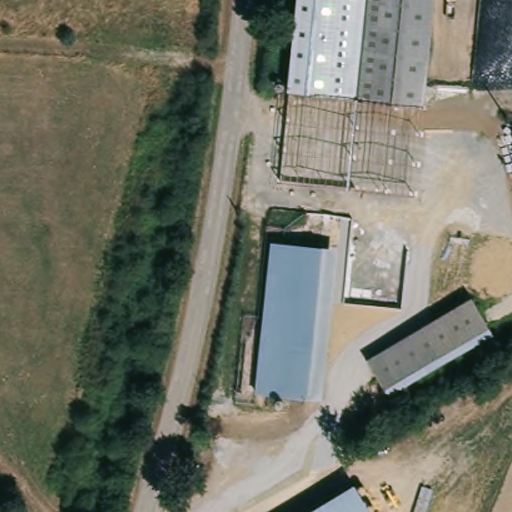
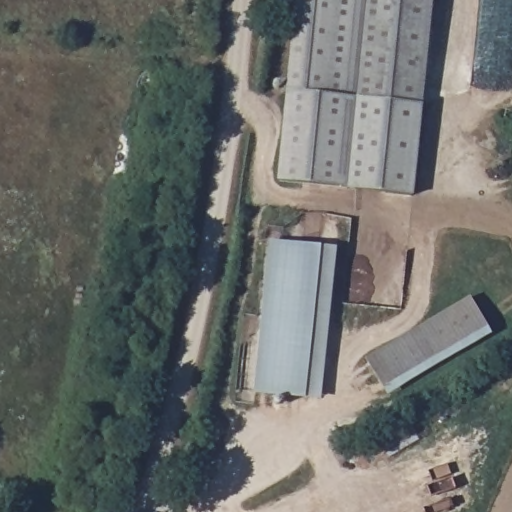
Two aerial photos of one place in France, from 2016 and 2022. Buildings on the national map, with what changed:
unchanged [(290,95),(299,0),(370,0),(360,102),(290,95)]
unchanged [(360,102),(370,0),(435,0),(425,108),(360,102)]
new [(416,195),(281,180),(290,95),(360,102),(425,108),(416,195)]
unchanged [(318,393),(304,392),(253,387),(265,235),(317,240),(330,241),(318,393)]
unchanged [(381,388),(365,359),(469,296),(486,326),(381,388)]

